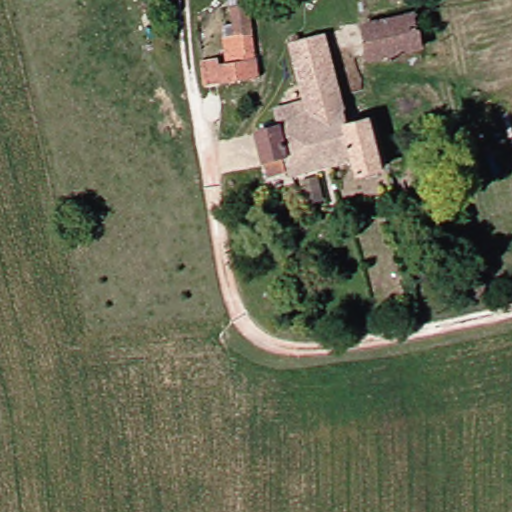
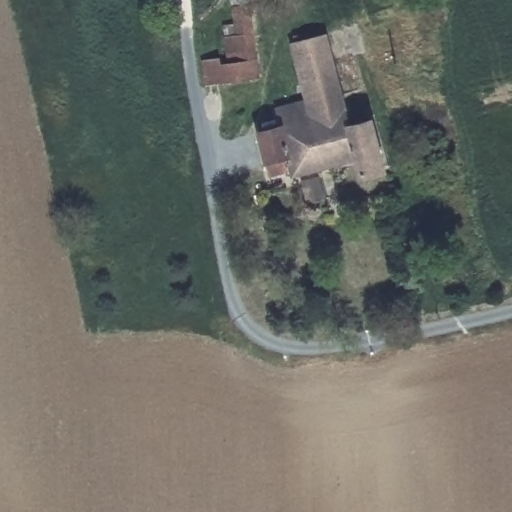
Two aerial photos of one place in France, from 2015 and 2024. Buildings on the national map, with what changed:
unchanged [(256,80),(211,79),(210,52),(225,52),(224,61),(230,61),(231,34),(235,34),(236,0),(258,0),(256,80)]
unchanged [(265,143),(255,114),(281,106),(276,89),(307,78),(292,28),(324,16),(357,110),(372,107),(388,156),(360,164),(355,144),(298,160),(271,167),(265,143)]

